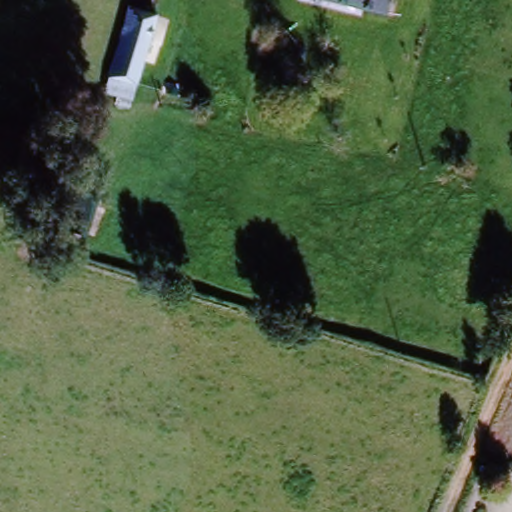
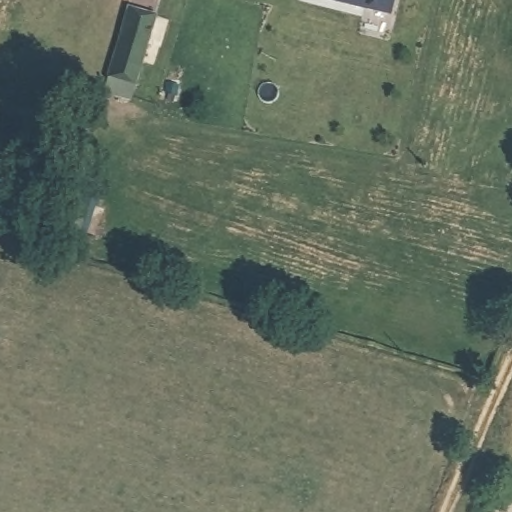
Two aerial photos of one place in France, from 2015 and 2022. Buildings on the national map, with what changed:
unchanged [(394,0),(387,20),(323,0),(394,0)]
unchanged [(131,97),(105,90),(125,23),(152,30),(131,97)]

